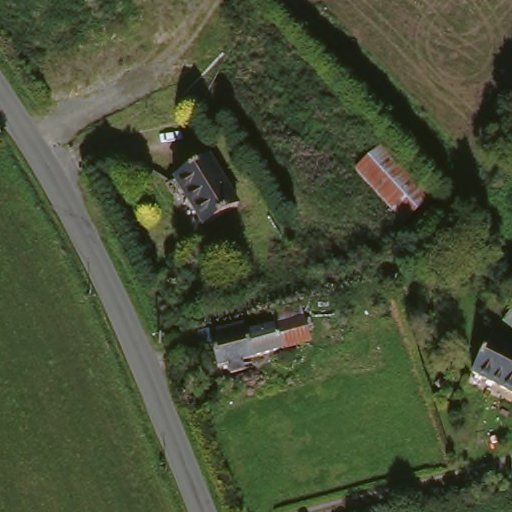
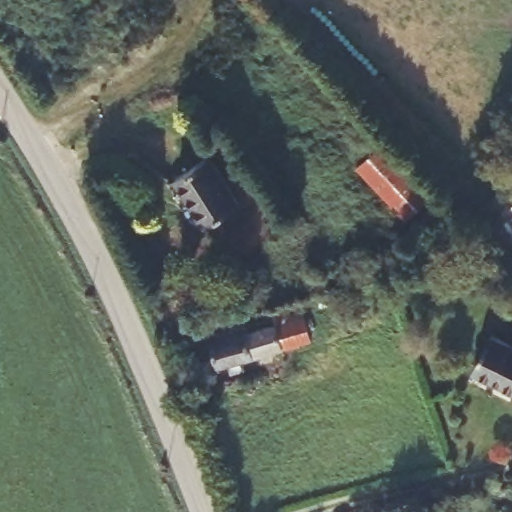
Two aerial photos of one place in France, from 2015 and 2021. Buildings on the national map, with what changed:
unchanged [(373,149),(424,203),(396,227),(347,173),(373,149)]
unchanged [(207,160),(236,207),(202,229),(172,181),(207,160)]
unchanged [(217,342),(214,332),(240,324),(243,335),(302,318),(307,341),(217,367),(209,344),(217,342)]
unchanged [(486,338),(512,351),(512,395),(468,374),(486,338)]

